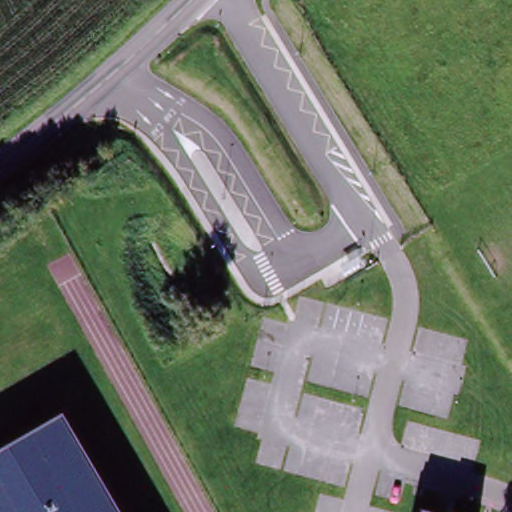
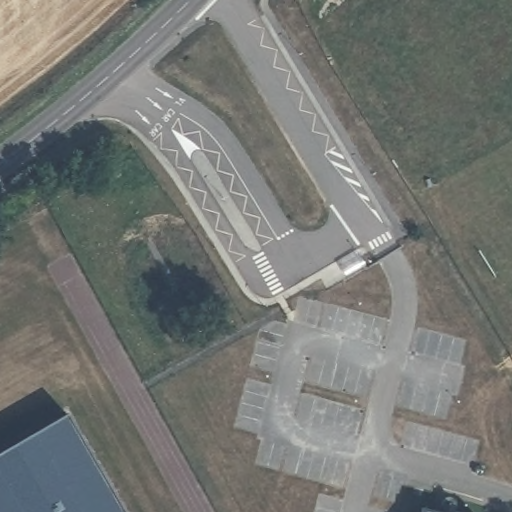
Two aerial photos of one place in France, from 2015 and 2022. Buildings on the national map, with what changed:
unchanged [(0,512),(0,454),(65,416),(122,512),(0,512)]
unchanged [(437,508),(453,512),(425,512),(427,505),(437,508)]

